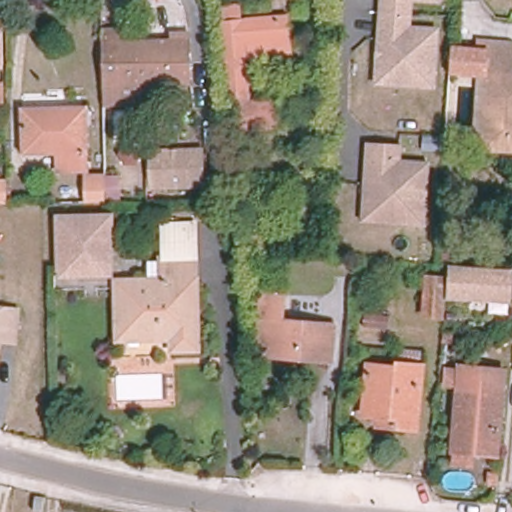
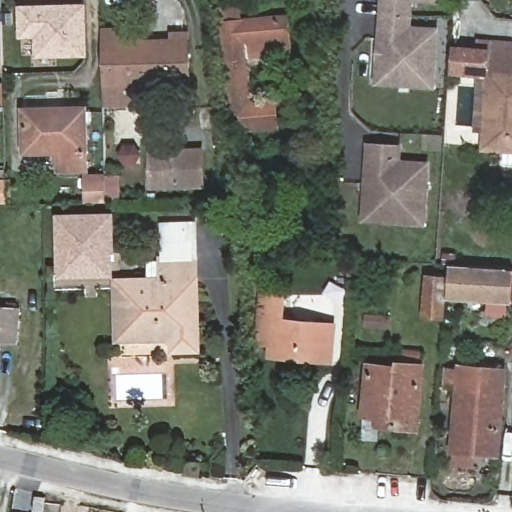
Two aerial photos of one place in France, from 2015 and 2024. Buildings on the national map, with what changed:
unchanged [(377,61),(380,0),(409,0),(407,28),(435,30),(432,86),(413,85),(375,82),(377,61)]
new [(39,57),(39,38),(18,38),(17,5),(87,5),(87,56),(39,57)]
unchanged [(3,68),(0,68),(0,17),(2,17),(3,68)]
unchanged [(222,22),(288,17),(291,53),(246,57),(250,104),(276,101),(278,127),(231,132),(222,22)]
unchanged [(115,30),(115,42),(185,41),(186,84),(150,85),(151,105),(101,106),(99,31),(115,30)]
unchanged [(485,149),(490,75),(451,73),(452,47),(491,50),(491,44),(512,45),(512,151),(485,149)]
unchanged [(87,170),(60,171),(59,152),(26,153),(25,111),(86,109),(87,170)]
unchanged [(361,177),(363,139),(394,141),(393,156),(422,158),(417,218),(397,216),(358,214),(361,177)]
unchanged [(200,180),(150,182),(149,147),(199,146),(200,180)]
unchanged [(104,177),(104,202),(82,202),(82,177),(104,177)]
unchanged [(0,204),(0,181),(7,181),(6,204),(0,204)]
unchanged [(62,272),(62,267),(61,215),(111,213),(112,259),(112,270),(62,272)]
unchanged [(197,343),(176,344),(175,332),(121,333),(120,278),(165,277),(164,219),(194,219),(197,343)]
new [(267,253),(268,267),(262,267),(263,285),(250,286),(247,255),(267,253)]
unchanged [(508,269),(506,300),(443,295),(446,264),(508,269)]
unchanged [(510,298),(511,275),(512,275),(512,298),(510,298)]
unchanged [(438,318),(420,316),(423,278),(442,280),(438,318)]
unchanged [(285,296),(282,321),(336,326),(332,362),(271,356),(272,345),(258,343),(263,294),(285,296)]
unchanged [(1,340),(0,345),(0,309),(19,311),(17,342),(1,340)]
unchanged [(390,330),(365,328),(366,314),(392,316),(390,330)]
unchanged [(503,365),(495,454),(449,452),(455,360),(503,365)]
unchanged [(417,428),(390,425),(390,417),(367,415),(371,366),(400,369),(400,365),(422,367),(417,428)]
unchanged [(45,512),(38,512),(35,512),(37,497),(46,497),(45,512)]

